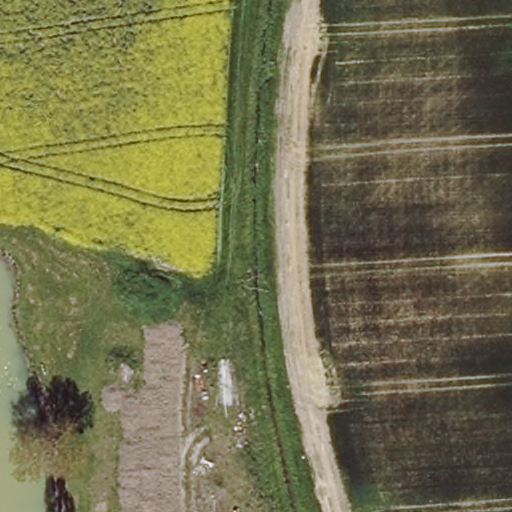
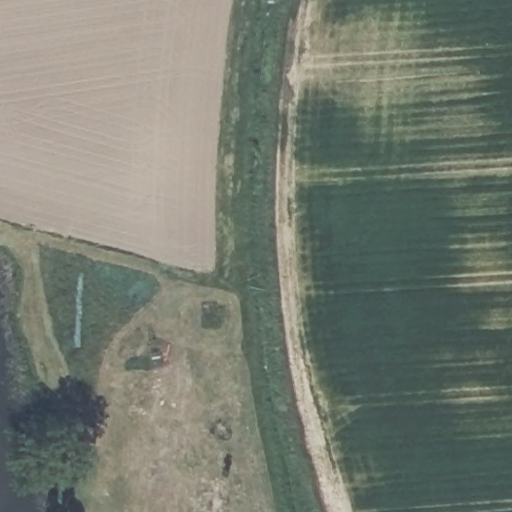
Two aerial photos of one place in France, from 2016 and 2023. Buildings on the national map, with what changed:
[]

